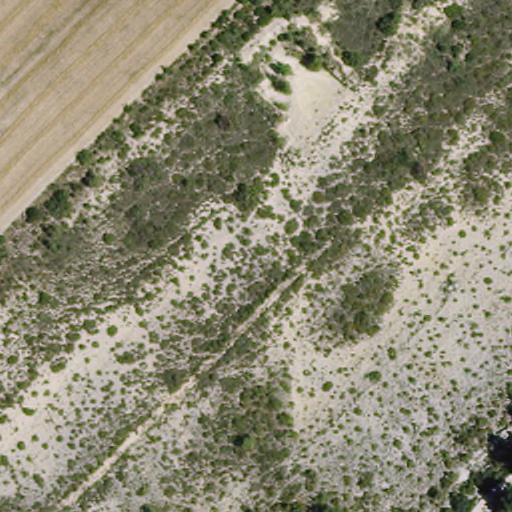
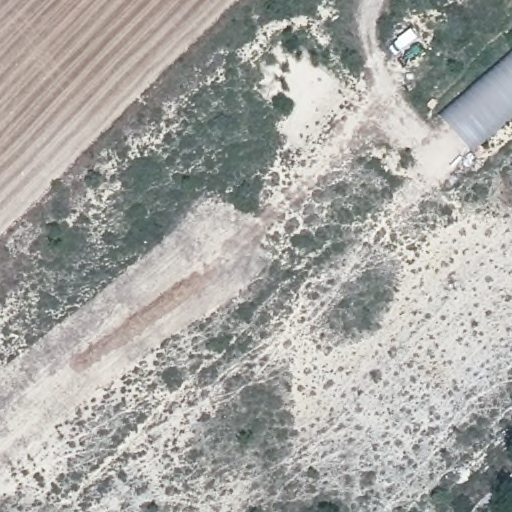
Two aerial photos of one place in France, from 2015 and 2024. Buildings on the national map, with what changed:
new [(439,115),(512,49),(512,115),(473,150),(439,115)]

